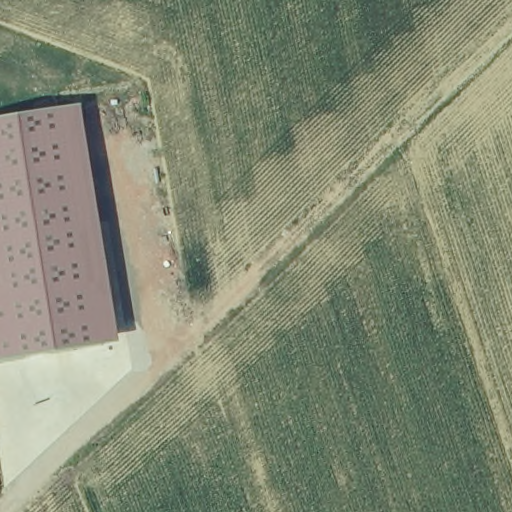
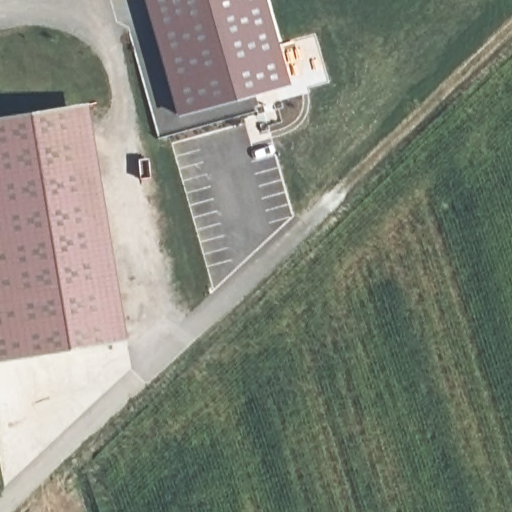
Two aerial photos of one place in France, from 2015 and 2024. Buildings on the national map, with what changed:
new [(283,85),(172,116),(140,0),(260,0),(283,85)]
unchanged [(122,340),(0,361),(0,117),(84,104),(122,340)]

